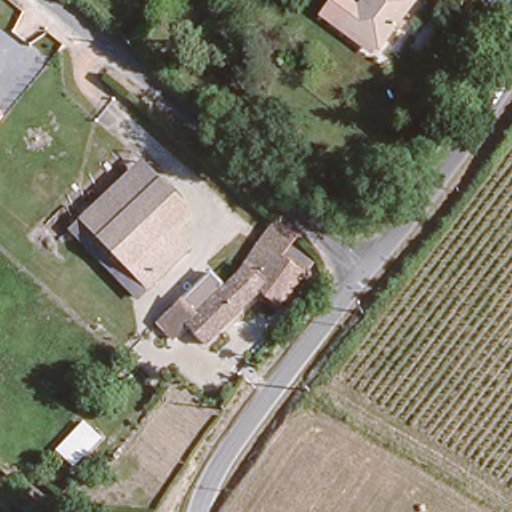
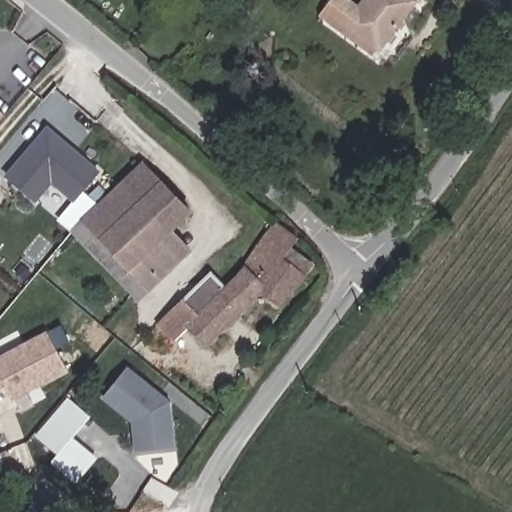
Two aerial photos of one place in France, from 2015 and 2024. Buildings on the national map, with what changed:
unchanged [(321,9),(328,0),(345,0),(355,8),(361,0),(412,0),(415,3),(380,50),(372,47),(321,9)]
unchanged [(4,117),(0,122),(0,114),(4,117)]
new [(51,184),(35,203),(4,177),(46,127),(99,171),(73,202),(51,184)]
unchanged [(132,165),(177,210),(159,229),(120,266),(105,250),(77,222),(114,183),(132,165)]
unchanged [(120,266),(140,287),(146,293),(135,303),(66,230),(77,222),(120,266)]
unchanged [(300,262),(303,264),(279,301),(257,289),(203,341),(182,322),(189,313),(176,300),(210,259),(225,274),(261,224),(307,251),(300,262)]
unchanged [(120,266),(159,229),(179,250),(140,287),(120,266)]
new [(11,398),(5,385),(0,388),(0,358),(47,334),(65,370),(11,398)]
new [(168,403),(172,447),(137,449),(135,421),(104,396),(126,369),(168,403)]
new [(70,403),(88,424),(61,452),(39,431),(70,403)]
demolished [(87,413),(106,435),(79,462),(57,441),(87,413)]

